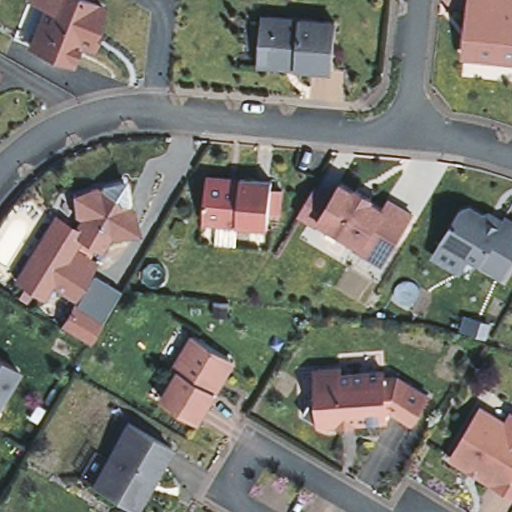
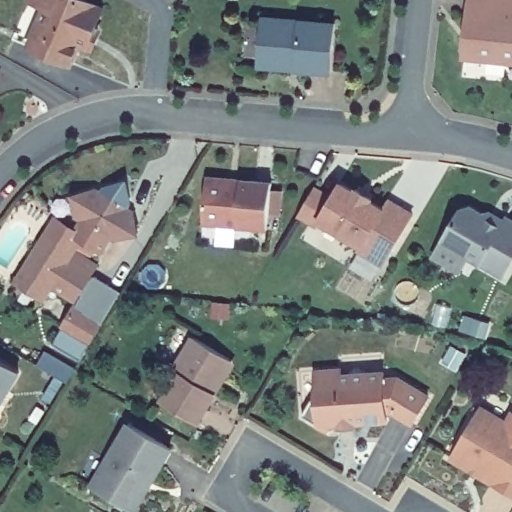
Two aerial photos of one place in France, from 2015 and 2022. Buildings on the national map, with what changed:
unchanged [(96,26),(102,29),(93,48),(80,42),(73,61),(14,39),(30,0),(89,0),(103,6),(96,26)]
unchanged [(472,54),(468,48),(470,8),(471,0),(512,0),(512,57),(472,54)]
unchanged [(267,14),(332,18),(330,67),(295,66),(295,59),(283,59),(283,65),(259,65),(260,19),(267,14)]
unchanged [(242,180),(242,175),(274,176),(270,225),(205,219),(208,176),(242,180)]
unchanged [(80,216),(76,215),(71,191),(93,185),(100,191),(105,183),(127,177),(132,199),(129,204),(135,209),(140,230),(117,235),(112,231),(102,247),(82,236),(70,255),(93,270),(76,297),(52,283),(43,296),(17,280),(55,214),(74,226),(80,216)]
unchanged [(365,249),(368,244),(365,242),(322,215),(318,220),(300,210),(316,183),(333,194),(343,179),(357,187),(386,205),(390,197),(414,212),(392,247),(385,260),(365,249)]
unchanged [(472,202),(503,221),(507,215),(512,217),(512,262),(505,273),(445,237),(464,205),(472,202)]
unchanged [(104,318),(92,340),(63,323),(77,301),(104,318)]
unchanged [(173,369),(193,338),(230,361),(231,370),(198,425),(161,403),(180,373),(173,369)]
unchanged [(0,406),(0,361),(20,372),(0,406)]
unchanged [(347,371),(347,376),(392,373),(391,381),(405,380),(435,398),(419,425),(396,412),(392,412),(392,421),(361,421),(360,430),(345,430),(345,426),(338,422),(332,432),(308,416),(318,400),(323,400),(322,373),(347,371)]
unchanged [(508,425),(512,420),(512,495),(452,460),(482,410),(508,425)]
unchanged [(177,445),(158,476),(151,473),(133,504),(97,481),(133,418),(177,445)]

